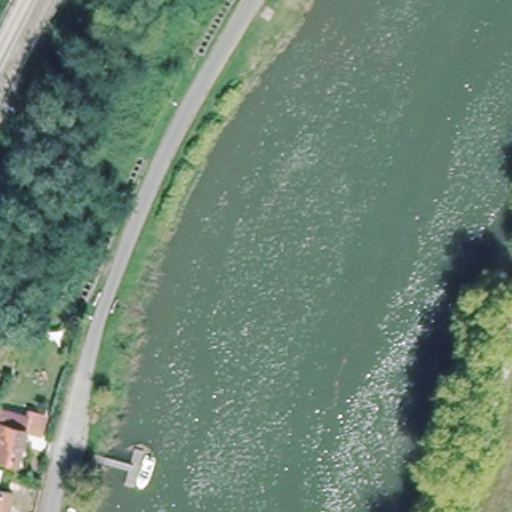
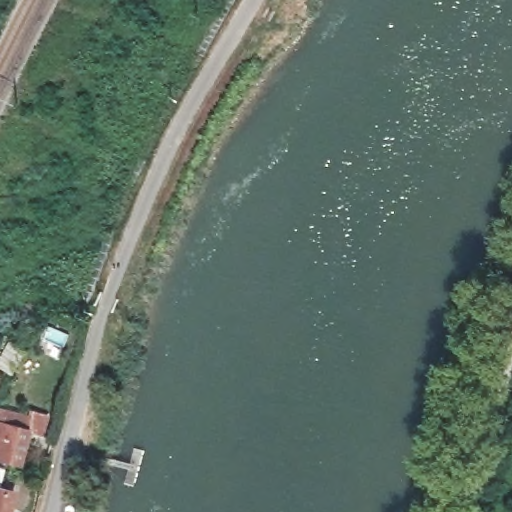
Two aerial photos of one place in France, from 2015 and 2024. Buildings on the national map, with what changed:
unchanged [(0,461),(0,427),(27,433),(19,466),(10,463),(0,461)]
unchanged [(12,490),(7,512),(0,512),(0,487),(12,490)]

